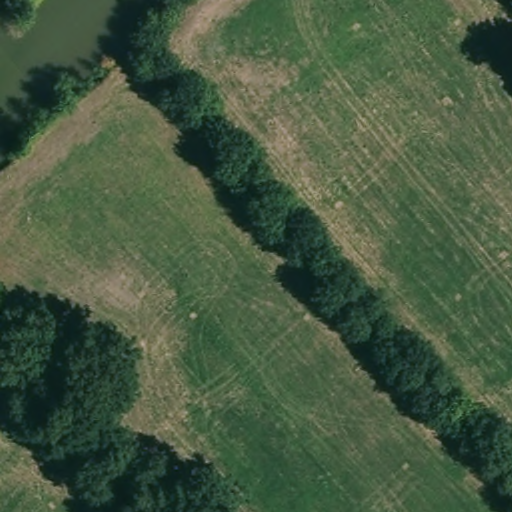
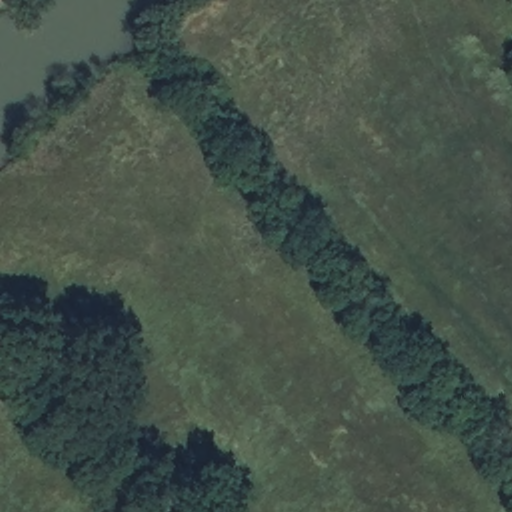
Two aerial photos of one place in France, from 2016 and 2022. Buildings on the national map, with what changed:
[]

